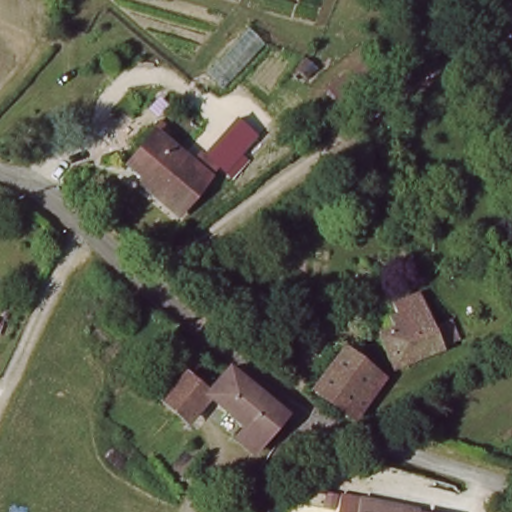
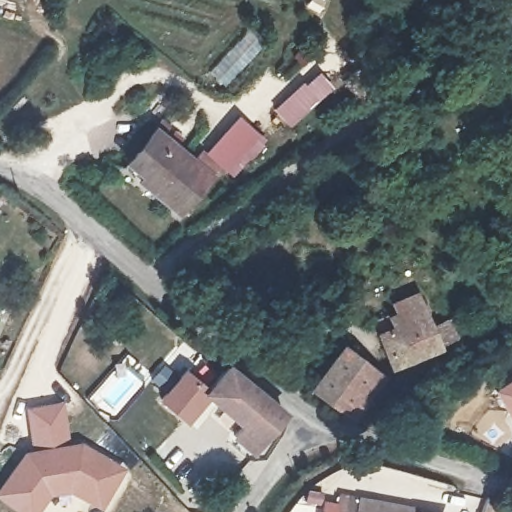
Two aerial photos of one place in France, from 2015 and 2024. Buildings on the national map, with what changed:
unchanged [(129,163),(158,126),(196,161),(205,151),(221,166),(212,176),(183,214),(129,163)]
unchanged [(381,330),(393,326),(390,315),(398,310),(396,295),(420,292),(449,371),(397,376),(381,330)]
unchanged [(349,350),(378,373),(346,416),(317,392),(349,350)]
unchanged [(225,362),(239,370),(289,405),(287,414),(281,419),(261,447),(239,432),(246,418),(207,393),(225,362)]
unchanged [(189,425),(163,410),(158,407),(170,386),(177,373),(207,393),(189,425)]
new [(492,388),(512,375),(512,422),(492,388)]
new [(65,401),(71,442),(30,448),(25,407),(65,401)]
new [(30,448),(71,442),(83,442),(126,468),(101,510),(70,495),(57,495),(46,500),(36,512),(16,512),(0,501),(0,484),(24,450),(30,448)]
unchanged [(419,507),(417,512),(337,512),(337,511),(316,509),(321,491),(419,507)]

